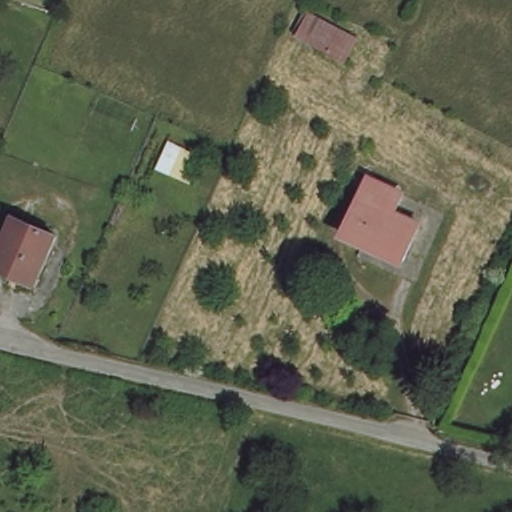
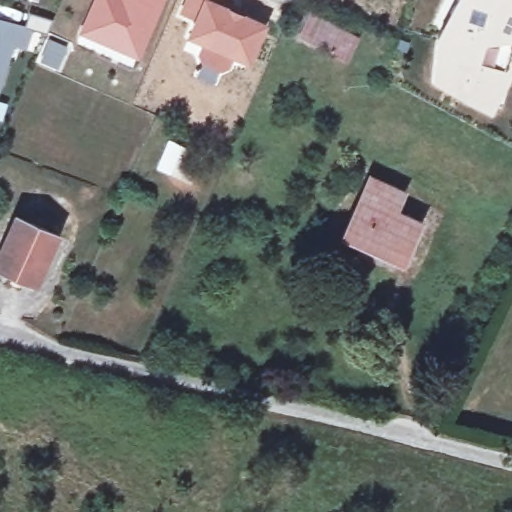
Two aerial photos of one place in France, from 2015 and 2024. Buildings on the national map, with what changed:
new [(163,0),(137,58),(78,32),(92,0),(163,0)]
new [(229,0),(227,4),(267,22),(248,65),(233,59),(216,83),(197,76),(202,62),(197,59),(202,44),(187,37),(195,19),(180,12),(185,0),(229,0)]
new [(432,81),(437,34),(456,0),(512,0),(512,71),(491,112),(432,81)]
unchanged [(312,11),(361,35),(348,61),(305,40),(299,37),(312,11)]
new [(26,47),(13,44),(0,84),(0,20),(32,30),(26,47)]
new [(49,36),(69,44),(58,69),(39,60),(49,36)]
new [(168,139),(199,157),(188,180),(155,167),(168,139)]
unchanged [(347,242),(371,187),(400,199),(392,222),(418,234),(403,268),(347,242)]
unchanged [(0,253),(17,216),(58,235),(36,286),(0,270),(0,253)]

